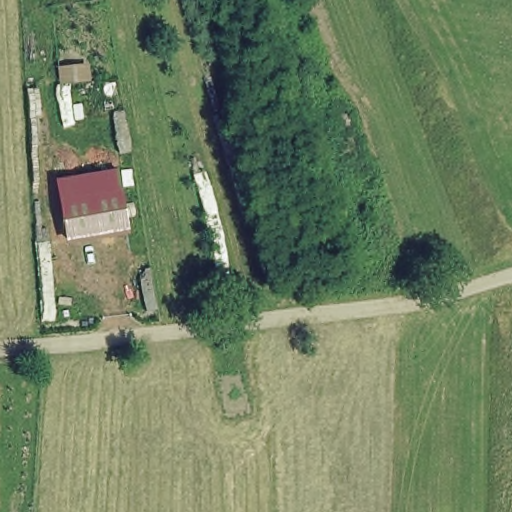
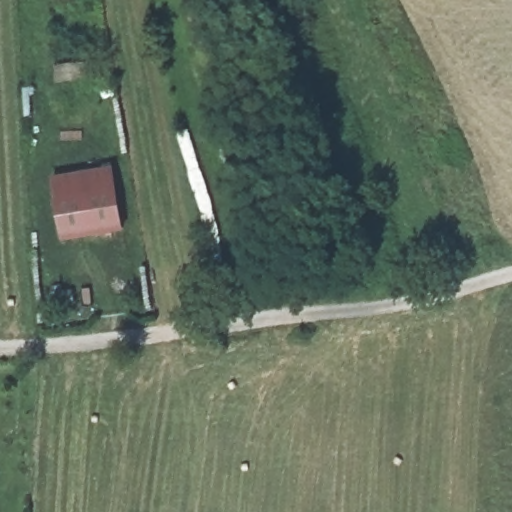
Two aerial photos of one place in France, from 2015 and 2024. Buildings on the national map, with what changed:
unchanged [(263,201),(235,208),(226,162),(240,159),(242,170),(256,166),(263,201)]
unchanged [(125,228),(101,232),(64,237),(55,178),(94,172),(114,168),(125,228)]

